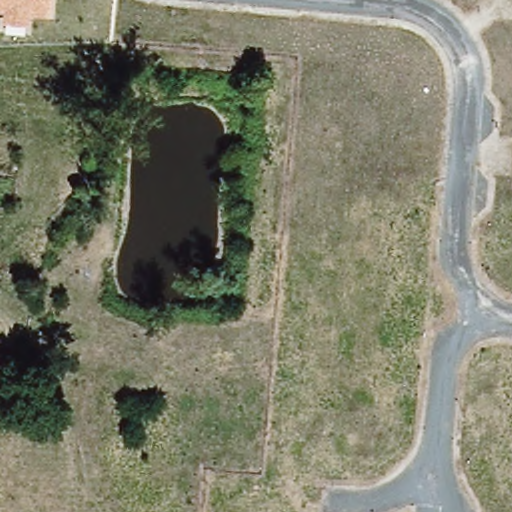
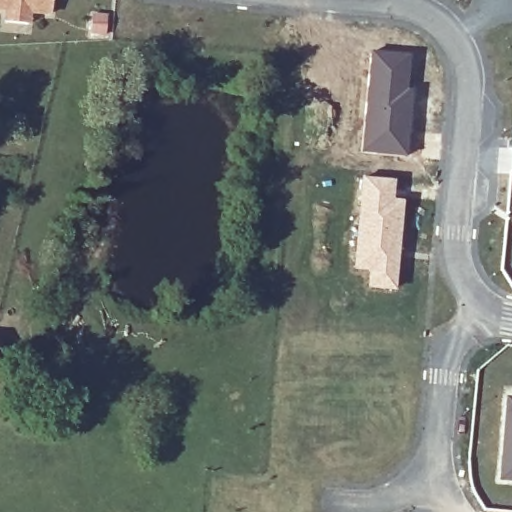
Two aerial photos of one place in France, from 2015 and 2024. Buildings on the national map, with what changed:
unchanged [(52,20),(30,20),(28,28),(2,25),(3,12),(0,12),(0,0),(54,0),(52,20)]
new [(372,50),(412,53),(408,89),(414,90),(407,156),(361,152),(372,50)]
new [(360,176),(395,180),(393,199),(403,200),(395,290),(365,287),(367,273),(351,271),(360,176)]
new [(499,480),(506,397),(512,398),(512,481),(499,480)]

